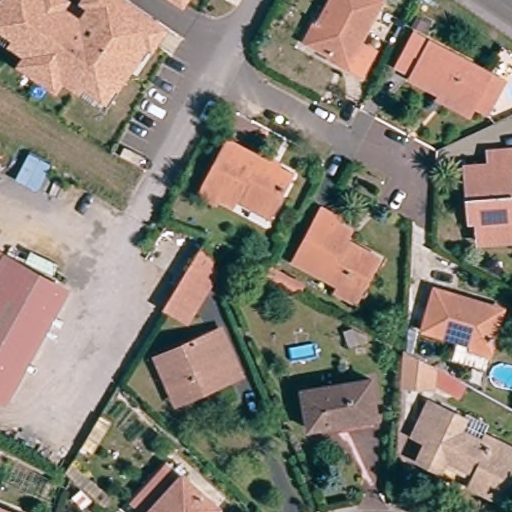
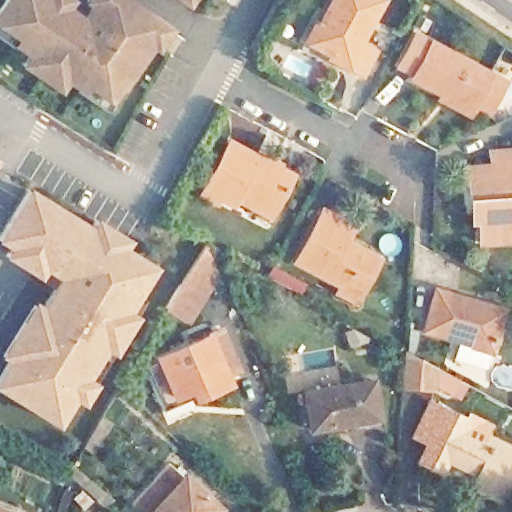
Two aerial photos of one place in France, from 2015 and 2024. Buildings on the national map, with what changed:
unchanged [(0,35),(0,1),(0,0),(39,0),(13,38),(10,41),(0,35)]
unchanged [(62,76),(56,84),(21,59),(26,51),(28,49),(13,38),(39,0),(72,0),(75,2),(85,9),(91,0),(134,0),(159,17),(166,22),(143,55),(138,52),(119,79),(122,81),(110,97),(104,106),(76,86),(79,84),(64,74),(62,76)]
unchanged [(179,0),(185,0),(183,2),(179,0)]
unchanged [(318,14),(324,0),(373,0),(374,0),(352,43),(367,50),(354,76),(339,69),(341,65),(308,47),(302,44),(318,14)]
unchanged [(440,96),(442,92),(414,78),(417,74),(402,65),(419,32),(493,72),(504,78),(487,110),(476,105),(471,113),(440,96)]
unchanged [(234,204),(232,207),(218,199),(215,205),(199,196),(227,143),(290,178),(274,209),(267,221),(234,204)]
unchanged [(463,206),(459,174),(483,171),(482,158),(501,156),(512,155),(512,201),(507,202),(512,245),(475,249),(472,221),(464,222),(463,206)]
new [(105,350),(88,380),(96,385),(84,406),(74,401),(58,426),(0,391),(0,374),(8,362),(0,357),(0,356),(33,300),(42,305),(59,280),(44,272),(39,280),(2,257),(8,249),(0,244),(0,235),(28,189),(91,226),(96,218),(130,240),(125,249),(157,267),(130,312),(138,316),(114,356),(105,350)]
unchanged [(329,291),(333,285),(288,260),(315,208),(330,216),(328,221),(343,229),(338,239),(371,256),(354,289),(347,300),(329,291)]
unchanged [(183,320),(159,305),(200,236),(214,268),(183,320)]
demolished [(0,244),(56,275),(0,377),(0,244)]
unchanged [(458,355),(463,341),(422,327),(434,287),(502,310),(489,350),(484,364),(458,355)]
unchanged [(190,398),(174,405),(155,360),(220,332),(237,371),(239,378),(190,398)]
unchanged [(430,384),(421,378),(418,384),(401,375),(402,350),(438,370),(430,384)]
unchanged [(376,421),(309,431),(303,392),(370,382),(376,421)]
unchanged [(481,436),(512,451),(512,469),(496,503),(464,488),(471,475),(441,462),(436,473),(414,463),(424,441),(409,434),(423,404),(460,421),(454,433),(478,443),(481,436)]
unchanged [(210,512),(143,512),(132,502),(170,461),(217,505),(210,512)]
unchanged [(69,473),(76,465),(113,498),(105,507),(69,473)]

